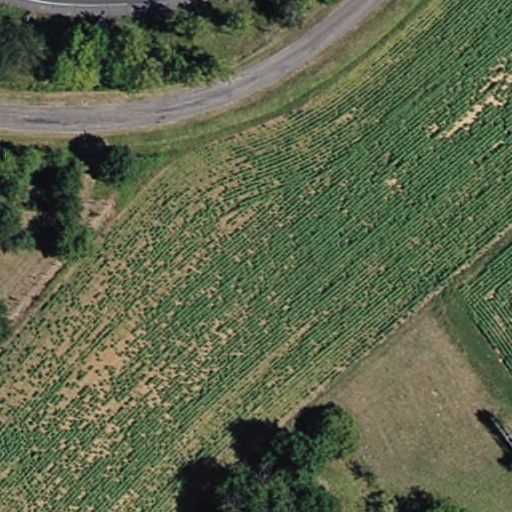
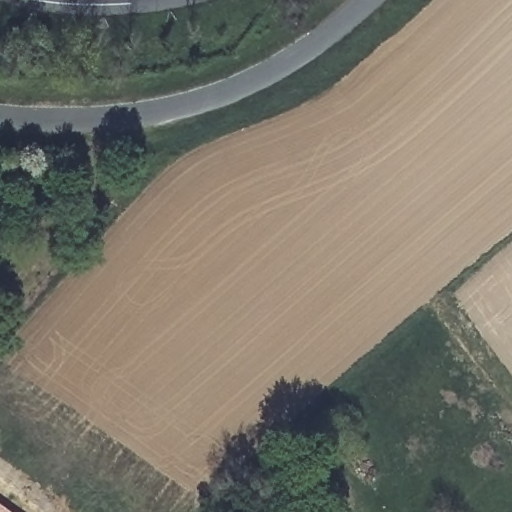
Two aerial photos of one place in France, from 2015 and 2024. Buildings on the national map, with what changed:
new [(0,505),(10,512),(0,512),(0,505)]

